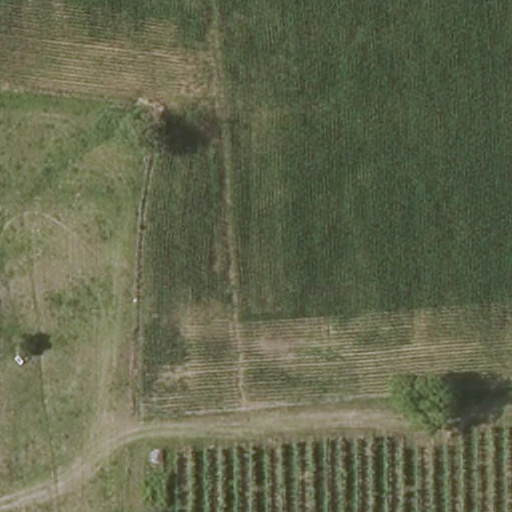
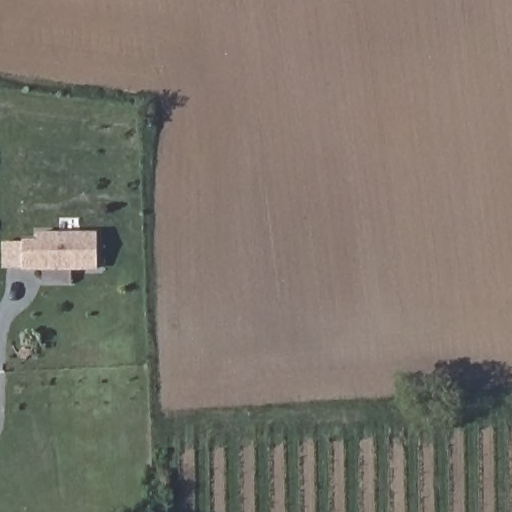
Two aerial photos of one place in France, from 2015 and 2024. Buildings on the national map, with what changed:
new [(40,232),(98,232),(99,269),(73,269),(73,283),(42,284),(42,270),(3,270),(2,241),(23,241),(40,232)]

